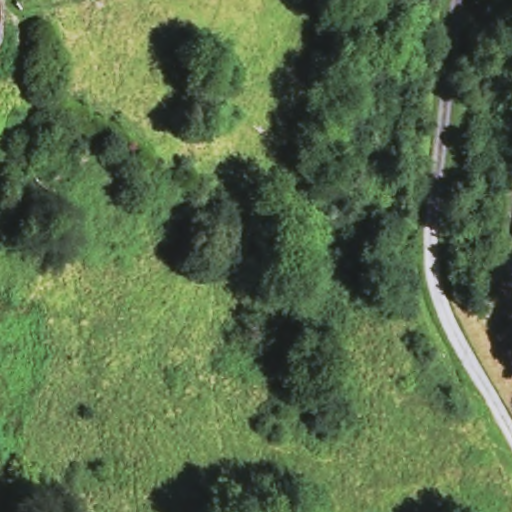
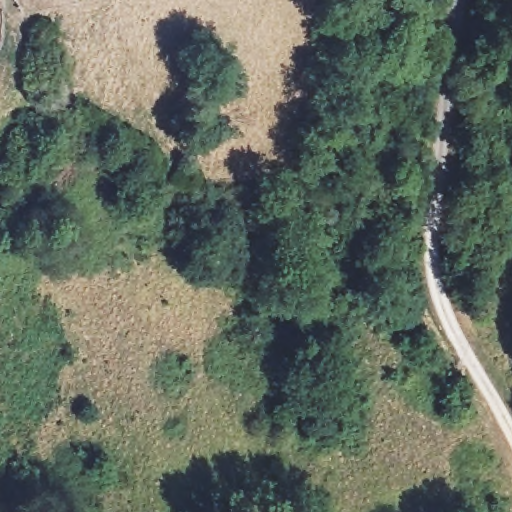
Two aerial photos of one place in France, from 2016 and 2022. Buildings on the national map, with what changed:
[]

